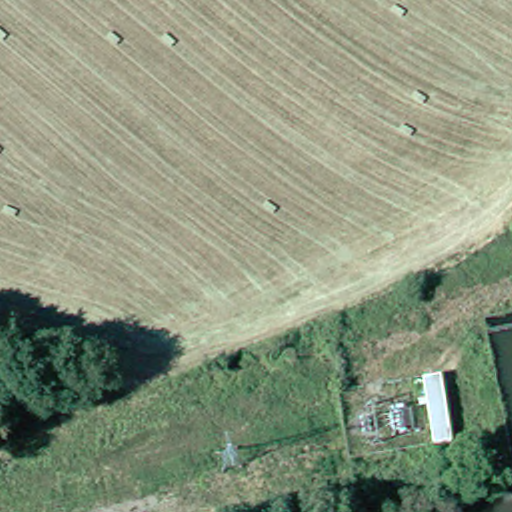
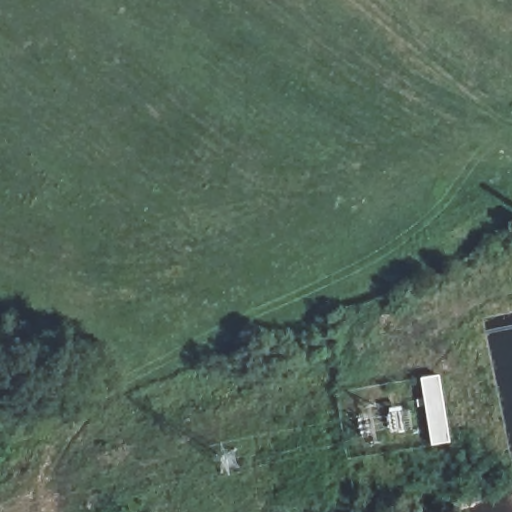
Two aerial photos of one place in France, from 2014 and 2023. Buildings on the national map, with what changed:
unchanged [(457,445),(435,449),(422,376),(443,370),(457,445)]

